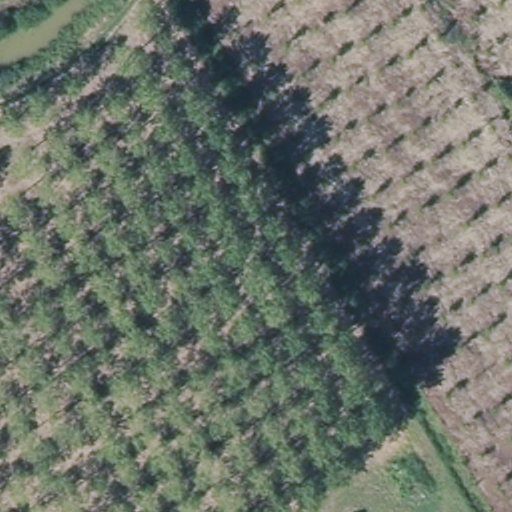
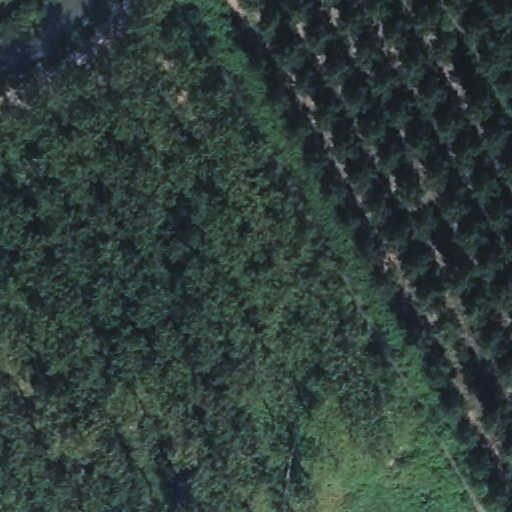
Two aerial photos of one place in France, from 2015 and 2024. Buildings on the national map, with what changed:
[]

